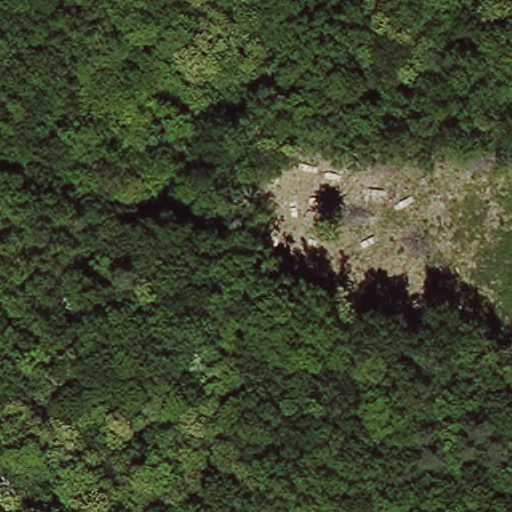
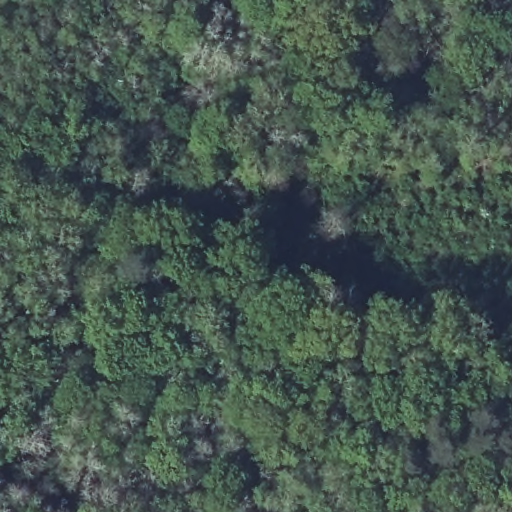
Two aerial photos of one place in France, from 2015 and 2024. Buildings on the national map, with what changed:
[]

